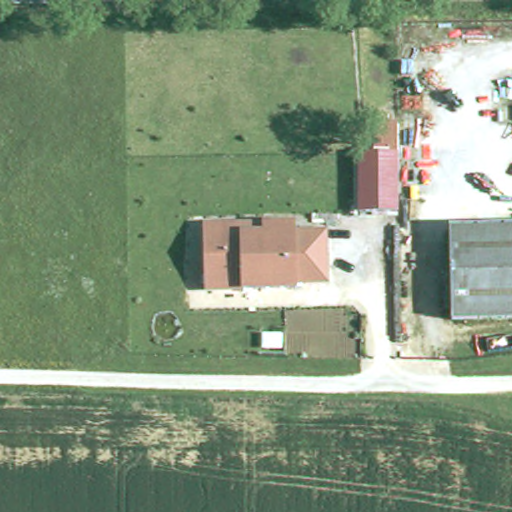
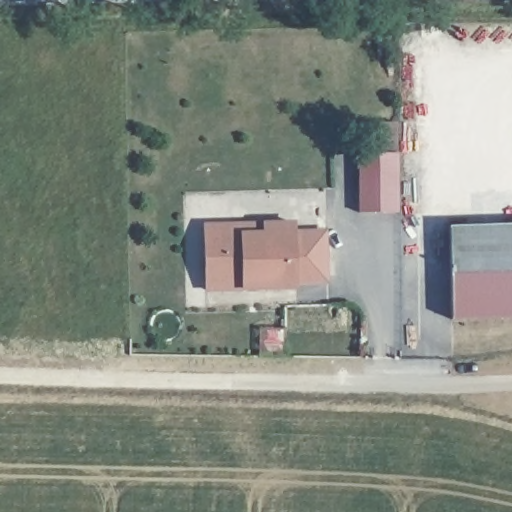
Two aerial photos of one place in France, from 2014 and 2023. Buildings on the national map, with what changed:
unchanged [(399,213),(359,212),(358,123),(397,125),(399,213)]
unchanged [(226,235),(238,234),(263,234),(263,224),(294,224),(295,232),(325,231),(326,281),(296,282),(296,287),(205,290),(204,235),(223,235),(226,235)]
unchanged [(451,319),(449,229),(512,227),(512,317),(451,319)]

